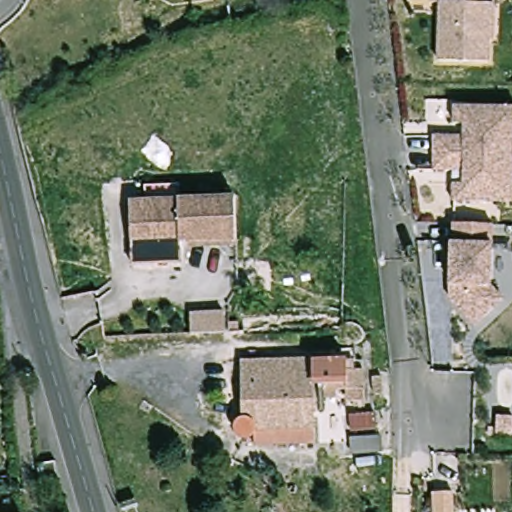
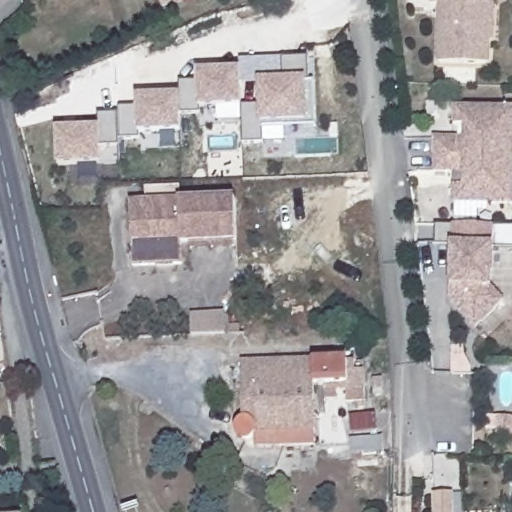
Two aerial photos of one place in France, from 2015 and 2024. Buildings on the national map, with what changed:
unchanged [(493,6),(492,41),(490,41),(488,64),(437,62),(440,5),(430,4),(430,0),(481,0),(481,6),(493,6)]
new [(96,129),(97,115),(118,116),(118,108),(136,106),(136,98),(178,96),(180,82),(197,80),(197,73),(238,71),(240,61),(309,60),(310,82),(315,82),(315,124),(307,124),(261,124),(263,143),(242,143),(241,108),(198,109),(200,114),(182,112),(182,133),(137,134),(138,138),(118,137),(118,146),(101,144),(101,166),(57,167),(56,131),(96,129)]
unchanged [(467,143),(468,131),(457,130),(458,112),(512,114),(512,161),(437,159),(437,141),(467,143)]
unchanged [(456,190),(466,190),(467,178),(437,177),(437,159),(512,161),(512,209),(455,208),(456,190)]
unchanged [(134,200),(150,199),(150,184),(184,184),(185,199),(239,197),(240,240),(183,241),(183,238),(135,239),(134,200)]
unchanged [(505,306),(476,332),(451,305),(453,250),(455,230),(481,231),(495,231),(493,251),(493,293),(505,306)]
unchanged [(183,238),(183,241),(184,263),(135,264),(135,239),(183,238)]
unchanged [(223,313),(224,333),(193,334),(191,334),(190,314),(223,313)]
unchanged [(366,403),(348,405),(346,386),(315,388),(313,363),(363,359),(366,403)]
unchanged [(251,448),(245,447),(241,445),(239,441),(239,437),(239,433),(240,429),(243,426),(248,424),(245,367),(313,363),(315,388),(317,430),(317,444),(251,448)]
unchanged [(349,439),(380,437),(381,454),(350,457),(349,439)]
unchanged [(55,466),(56,484),(37,485),(36,467),(55,466)]
unchanged [(436,498),(455,498),(456,512),(436,512),(436,498)]

